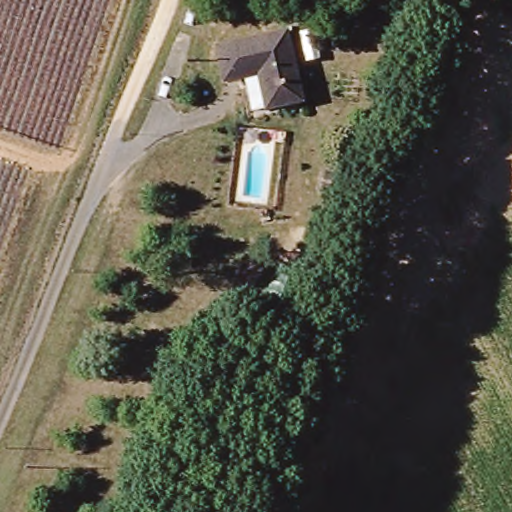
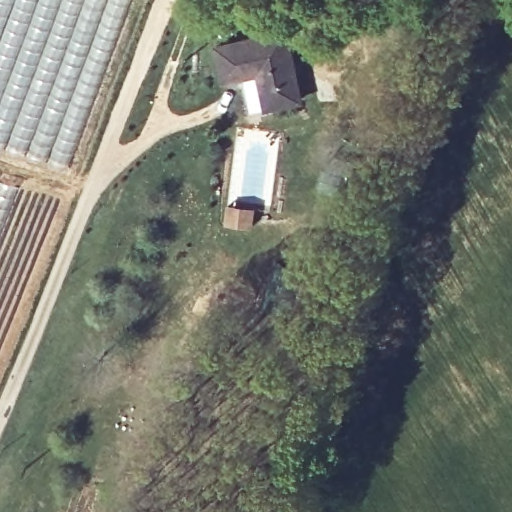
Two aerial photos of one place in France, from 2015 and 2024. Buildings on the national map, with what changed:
new [(124,3),(106,55),(64,169),(47,164),(0,150),(0,0),(116,0),(124,3)]
unchanged [(268,114),(257,79),(225,89),(214,52),(278,31),(302,103),(268,114)]
unchanged [(362,186),(346,182),(352,167),(365,167),(362,186)]

